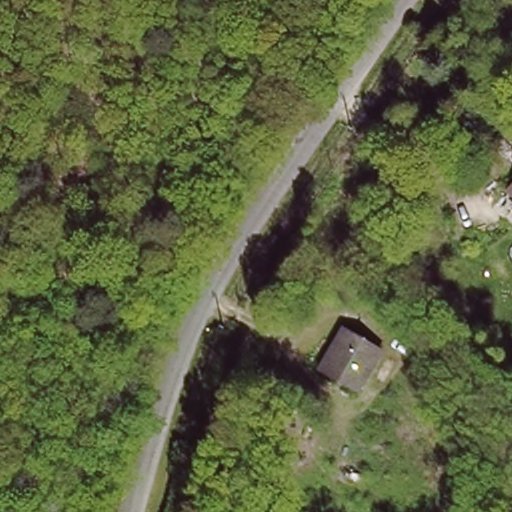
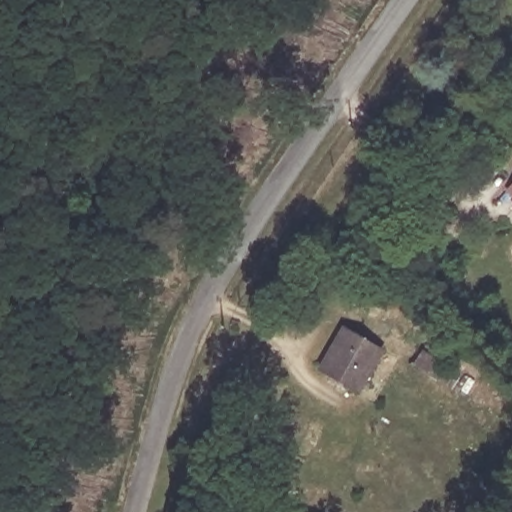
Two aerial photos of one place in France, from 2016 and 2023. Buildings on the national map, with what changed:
unchanged [(512,179),(512,206),(498,197),(512,179)]
unchanged [(385,346),(373,379),(329,367),(340,334),(385,346)]
unchanged [(468,371),(465,385),(431,377),(436,363),(468,371)]

